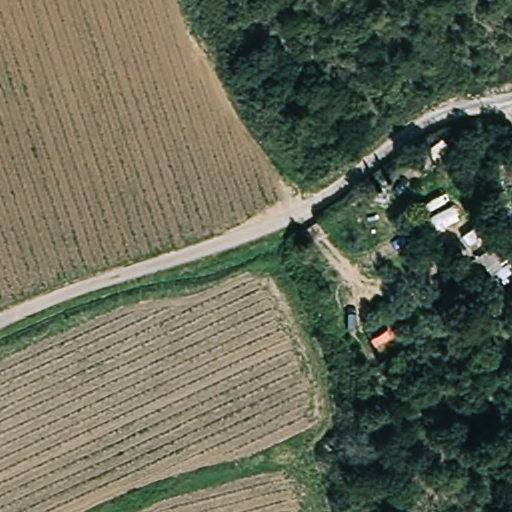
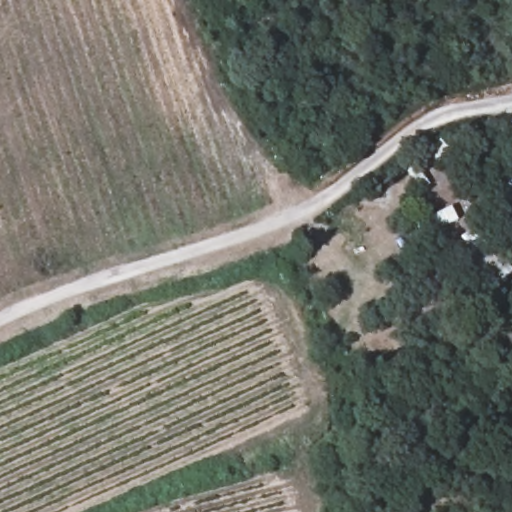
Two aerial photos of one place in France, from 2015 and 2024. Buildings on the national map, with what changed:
unchanged [(477,233),(490,224),(512,254),(512,257),(508,261),(512,267),(512,272),(500,282),(494,271),(487,276),(460,236),(473,227),(477,233)]

